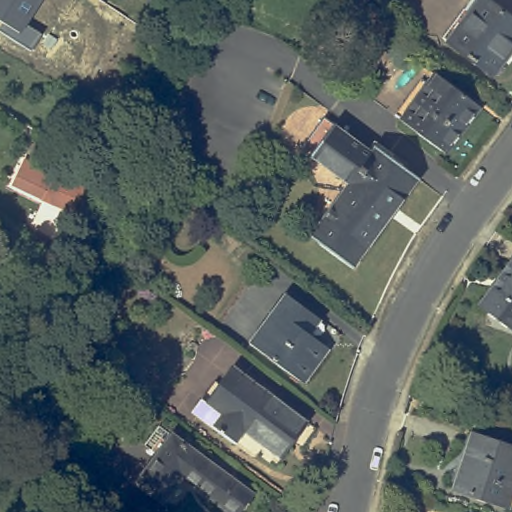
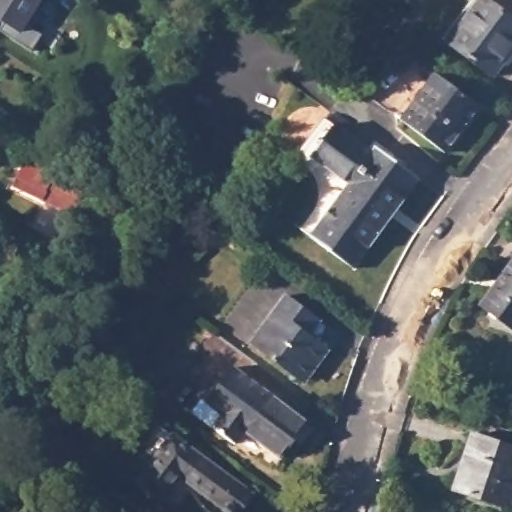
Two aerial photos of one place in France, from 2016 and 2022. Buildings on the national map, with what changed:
unchanged [(0,29),(5,23),(0,19),(0,0),(41,0),(26,24),(41,34),(32,49),(0,31),(0,29)]
unchanged [(465,11),(468,14),(479,0),(487,0),(512,18),(512,51),(493,77),(447,43),(443,40),(465,11)]
unchanged [(395,115),(422,79),(430,85),(437,75),(479,106),(444,153),(402,121),(395,115)]
unchanged [(326,117),(372,152),(376,146),(420,179),(352,269),(308,237),(348,184),(302,149),(326,117)]
unchanged [(25,160),(85,188),(72,213),(13,185),(25,160)]
unchanged [(491,293),(493,294),(512,269),(512,327),(482,305),(491,293)]
unchanged [(301,376),(250,339),(286,290),(314,311),(321,316),(310,331),(326,343),(301,376)]
unchanged [(207,403),(234,367),(308,423),(282,459),(245,431),(236,444),(214,428),(198,416),(207,403)]
unchanged [(164,427),(260,497),(248,512),(233,512),(186,478),(166,504),(140,485),(161,456),(149,447),(164,427)]
unchanged [(472,434),(512,447),(512,501),(510,508),(453,489),(472,434)]

